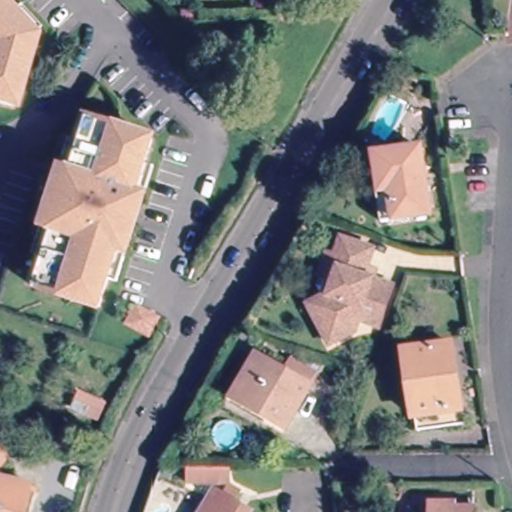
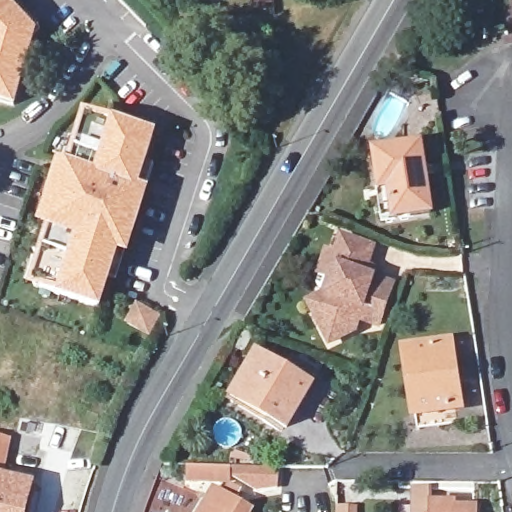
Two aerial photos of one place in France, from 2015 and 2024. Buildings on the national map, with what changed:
unchanged [(39,26),(20,97),(0,92),(0,0),(25,0),(46,20),(39,26)]
unchanged [(118,276),(109,273),(100,302),(43,285),(51,256),(44,255),(85,113),(150,132),(144,157),(151,160),(143,190),(134,187),(126,215),(134,217),(118,276)]
unchanged [(381,220),(374,156),(419,150),(427,214),(381,220)]
unchanged [(387,322),(369,316),(364,328),(337,333),(330,301),(342,299),(339,290),(329,286),(325,285),(335,254),(343,256),(348,238),(379,248),(374,265),(371,274),(382,277),(399,283),(387,322)]
unchanged [(414,420),(403,355),(449,347),(460,412),(414,420)]
unchanged [(232,403),(253,364),(305,392),(284,431),(232,403)]
unchanged [(3,462),(0,473),(0,448),(6,449),(3,462)]
unchanged [(25,512),(0,512),(0,482),(30,489),(25,512)]
unchanged [(207,505),(215,491),(224,496),(233,501),(247,510),(245,512),(202,512),(207,505)]

